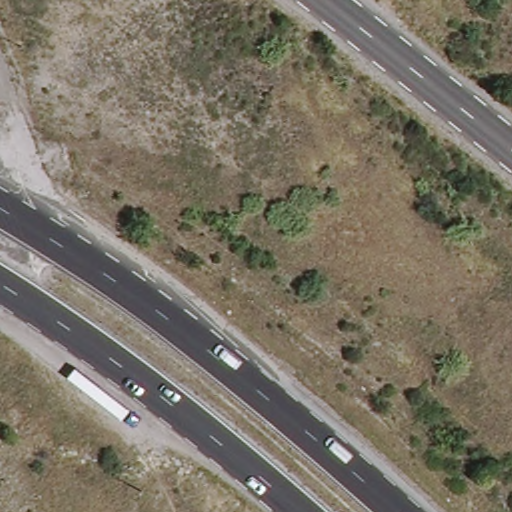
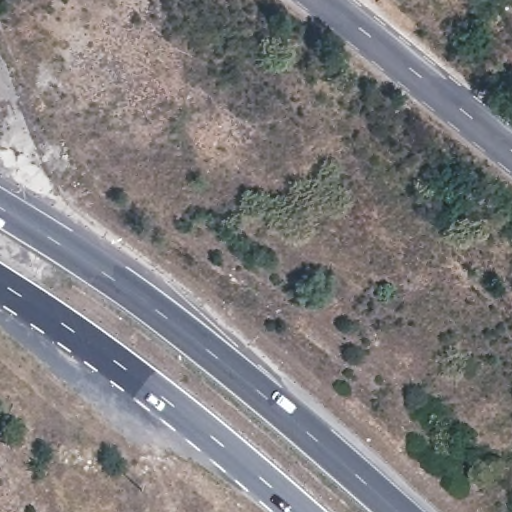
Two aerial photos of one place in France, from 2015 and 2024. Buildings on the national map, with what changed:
[]

